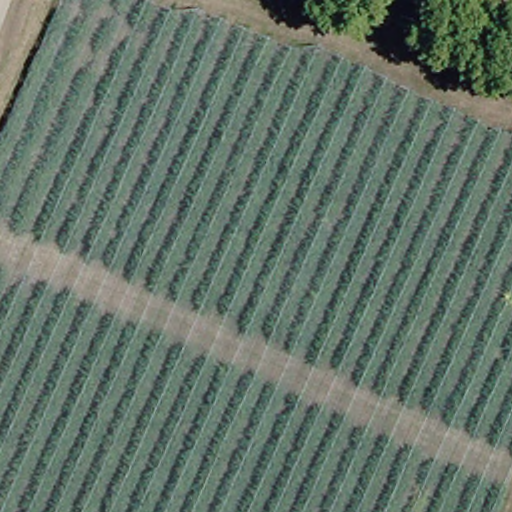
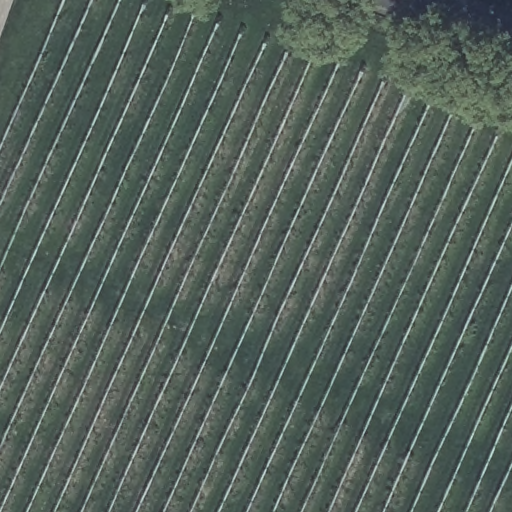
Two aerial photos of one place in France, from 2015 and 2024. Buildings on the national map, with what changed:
unchanged [(368,41),(351,34),(340,28),(351,7),(381,17),(368,41)]

